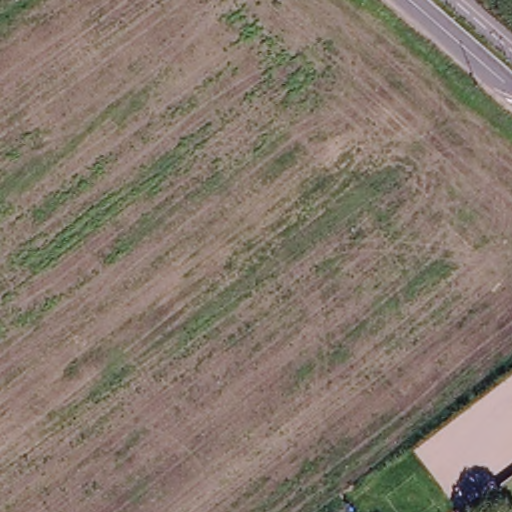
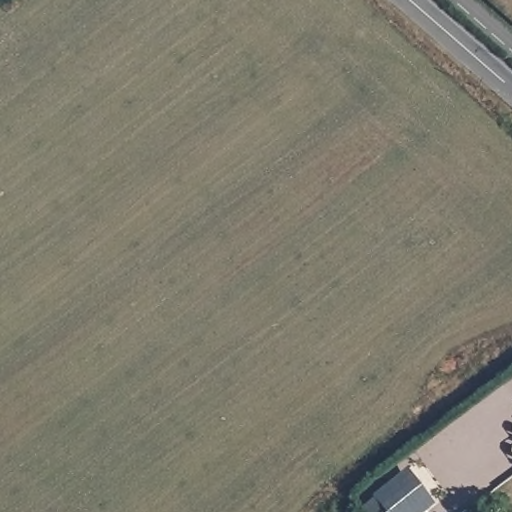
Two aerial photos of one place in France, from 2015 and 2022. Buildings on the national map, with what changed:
new [(426,512),(384,512),(383,511),(385,511),(372,495),(407,469),(434,506),(426,512)]

